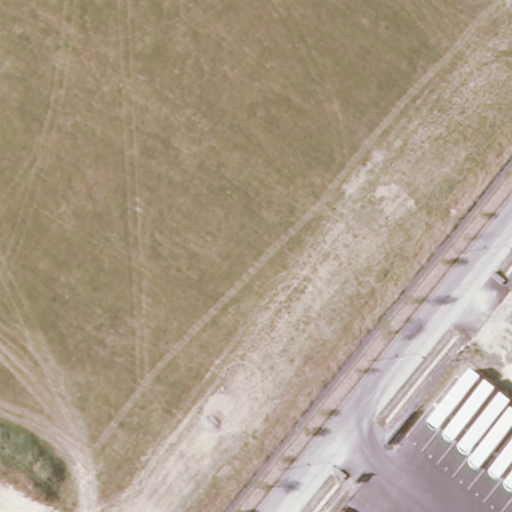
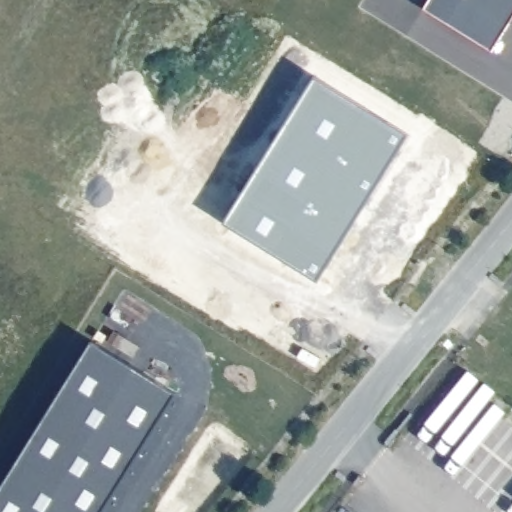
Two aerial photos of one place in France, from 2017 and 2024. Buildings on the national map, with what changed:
new [(512,0),(512,19),(492,52),(424,10),(430,0),(512,0)]
new [(410,135),(319,282),(225,224),(315,80),(410,135)]
new [(0,489),(92,341),(177,392),(104,512),(0,512),(0,489)]

